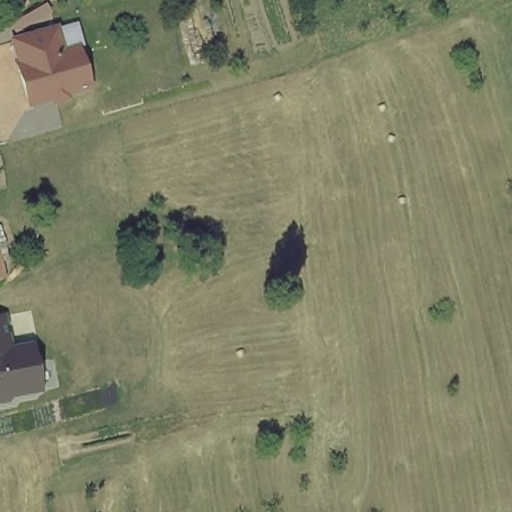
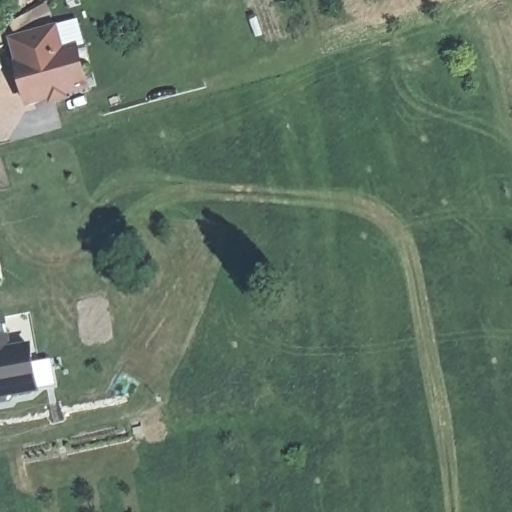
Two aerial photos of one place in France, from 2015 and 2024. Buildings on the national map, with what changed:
unchanged [(30,99),(18,60),(21,60),(13,36),(54,23),(62,47),(76,42),(88,82),(30,99)]
unchanged [(25,344),(33,389),(8,394),(4,398),(0,399),(0,328),(4,348),(25,344)]

